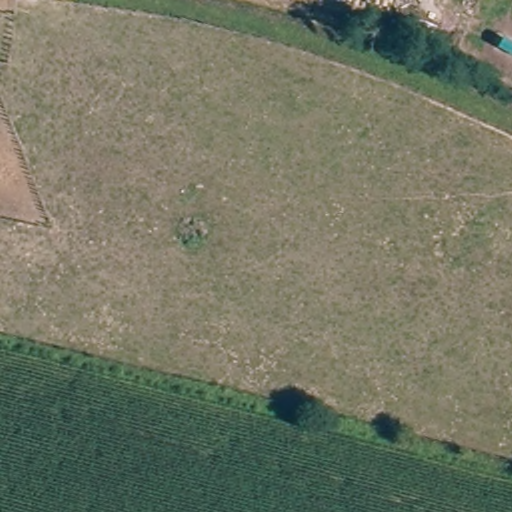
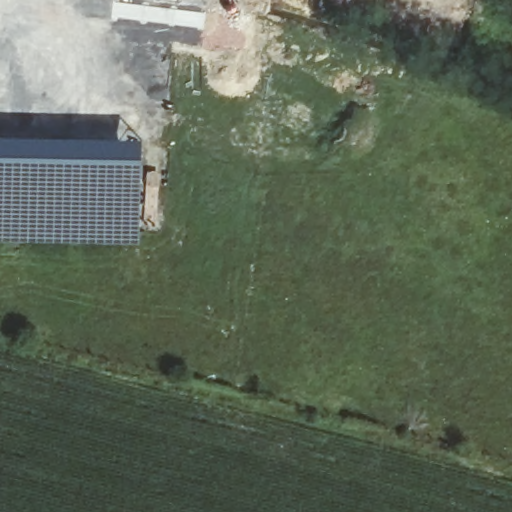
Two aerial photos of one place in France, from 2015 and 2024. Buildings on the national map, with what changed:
new [(0,137),(143,139),(140,244),(0,241),(0,137)]

